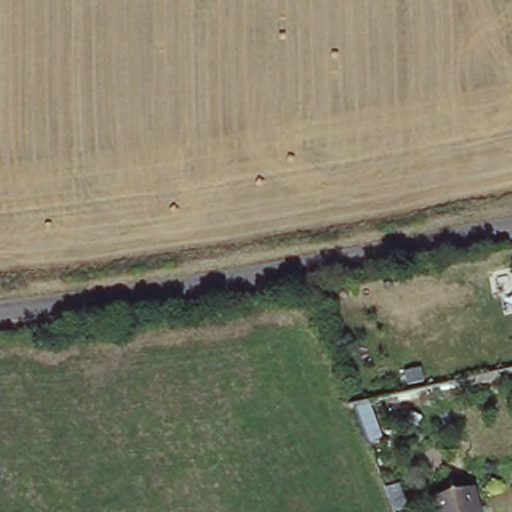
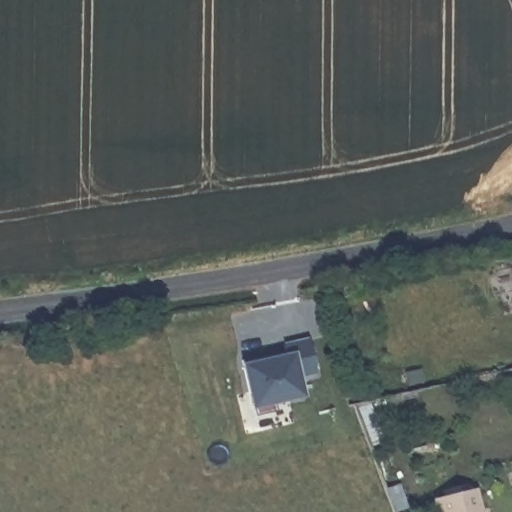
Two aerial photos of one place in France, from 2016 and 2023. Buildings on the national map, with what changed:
new [(317,375),(298,376),(304,400),(253,412),(240,365),(243,365),(241,360),(281,352),(279,344),(310,337),(317,375)]
demolished [(377,401),(392,440),(371,445),(357,406),(377,401)]
unchanged [(471,512),(432,512),(428,499),(464,490),(471,512)]

